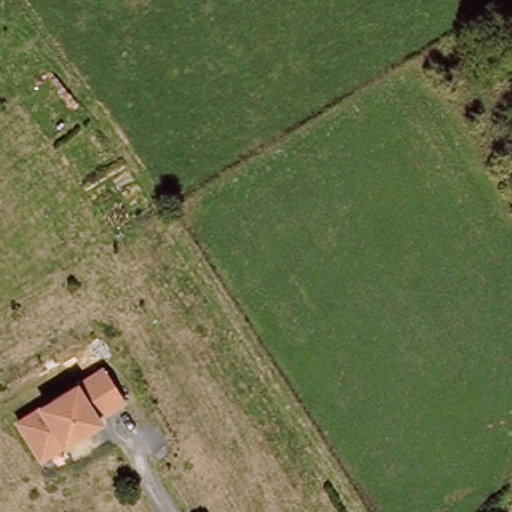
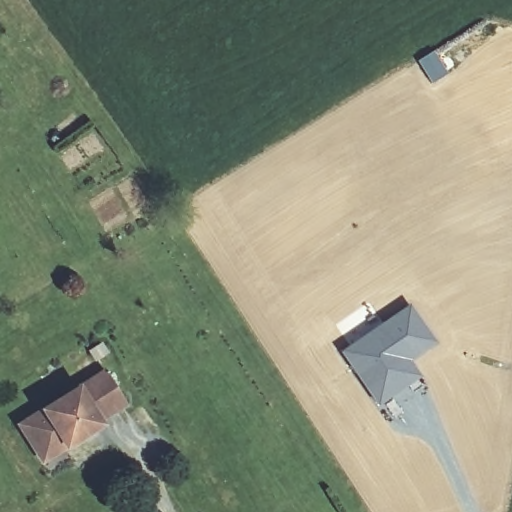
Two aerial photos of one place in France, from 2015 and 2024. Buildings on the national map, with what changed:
new [(410,302),(437,343),(411,361),(420,375),(377,405),(340,349),(410,302)]
unchanged [(16,425),(22,421),(102,370),(122,402),(95,419),(97,424),(62,447),(39,461),(16,425)]

